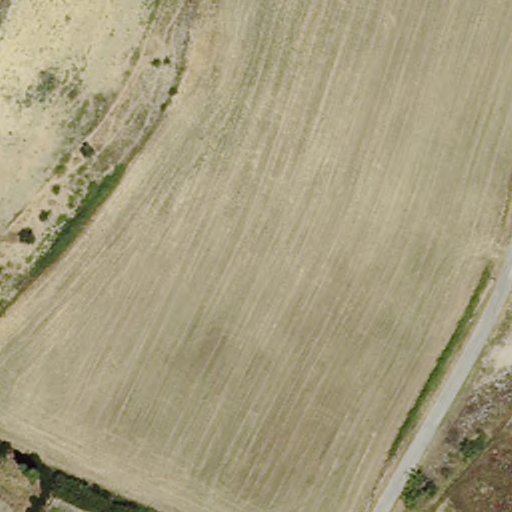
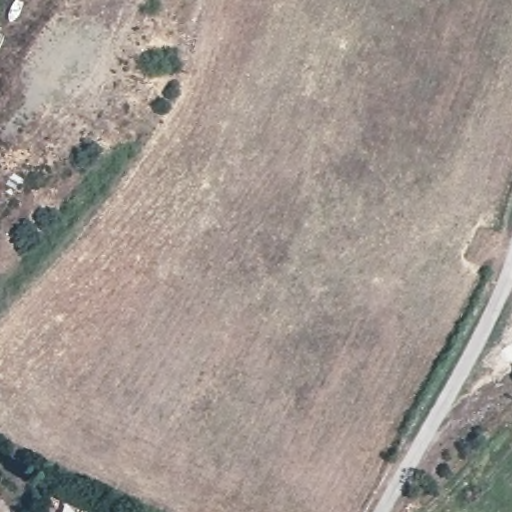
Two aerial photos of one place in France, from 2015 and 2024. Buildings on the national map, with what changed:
[]

